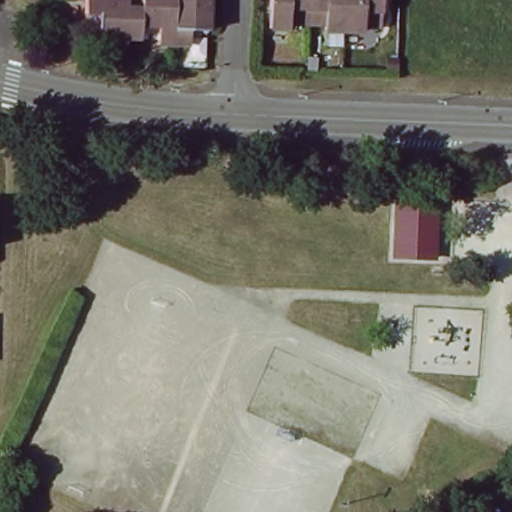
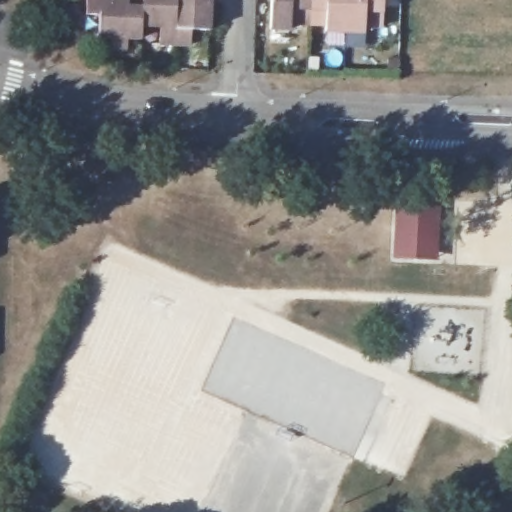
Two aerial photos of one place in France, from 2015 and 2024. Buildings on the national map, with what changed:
unchanged [(142,14),(142,24),(141,37),(127,36),(126,48),(110,47),(110,36),(98,35),(99,14),(86,14),(86,0),(142,0),(142,14)]
unchanged [(175,44),(160,44),(160,25),(142,24),(142,14),(142,0),(176,0),(175,44)]
unchanged [(210,30),(192,29),(191,45),(175,44),(176,0),(211,0),(210,30)]
unchanged [(308,28),(290,27),(290,34),(271,33),(271,0),(308,0),(308,28)]
unchanged [(344,35),(325,35),(326,29),(308,28),(308,0),(345,0),(344,35)]
unchanged [(383,31),(364,30),(363,36),(344,35),(345,0),(384,0),(383,31)]
unchanged [(434,257),(422,257),(394,256),(397,202),(424,204),(436,204),(434,257)]

